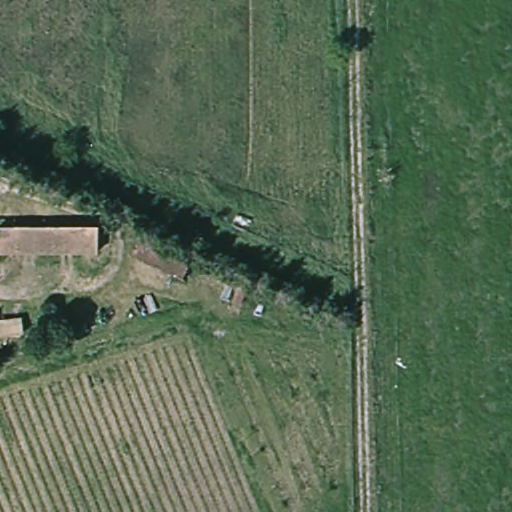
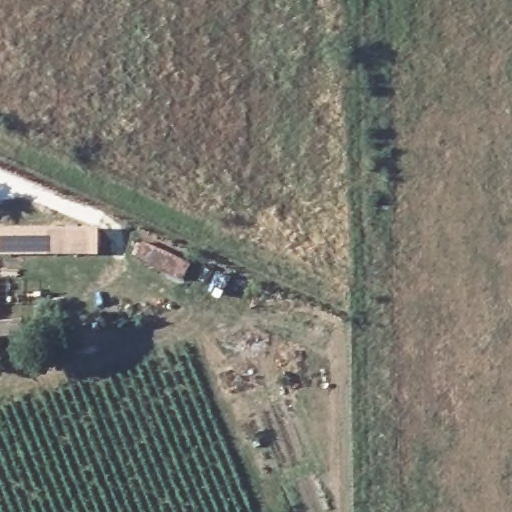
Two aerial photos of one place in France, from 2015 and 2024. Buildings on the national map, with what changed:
unchanged [(0,249),(0,224),(98,231),(95,257),(0,249)]

